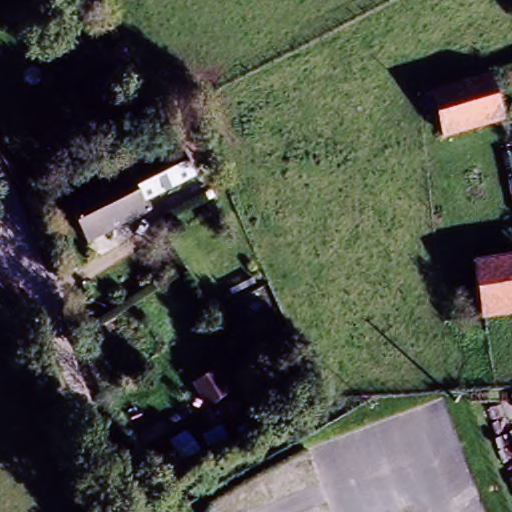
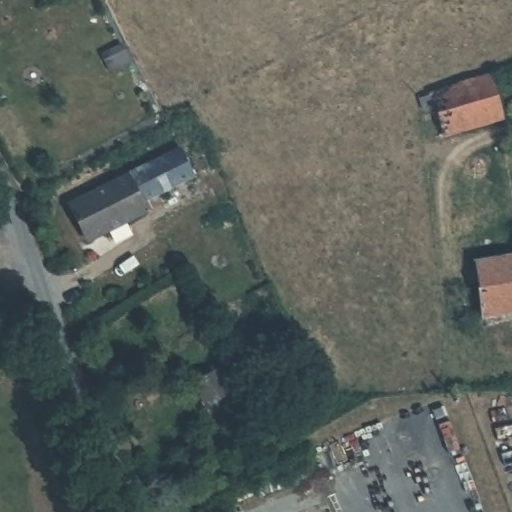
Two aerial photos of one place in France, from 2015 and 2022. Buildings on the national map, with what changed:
unchanged [(439,130),(426,91),(485,72),(498,111),(439,130)]
unchanged [(132,177),(186,151),(197,176),(144,201),(132,177)]
unchanged [(69,206),(110,185),(129,224),(88,244),(69,206)]
unchanged [(512,297),(478,300),(475,262),(508,259),(512,259),(512,297)]
unchanged [(224,407),(209,383),(233,368),(248,394),(224,407)]

